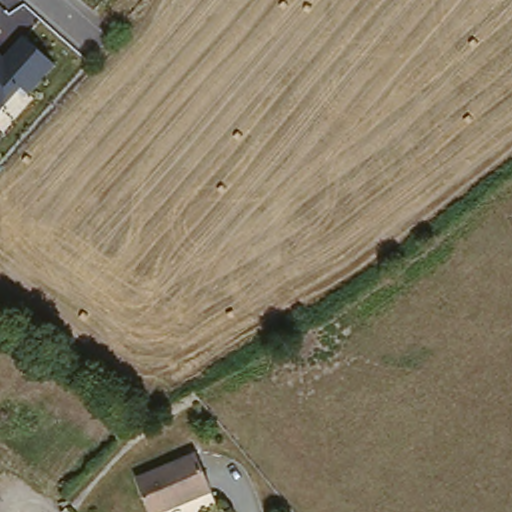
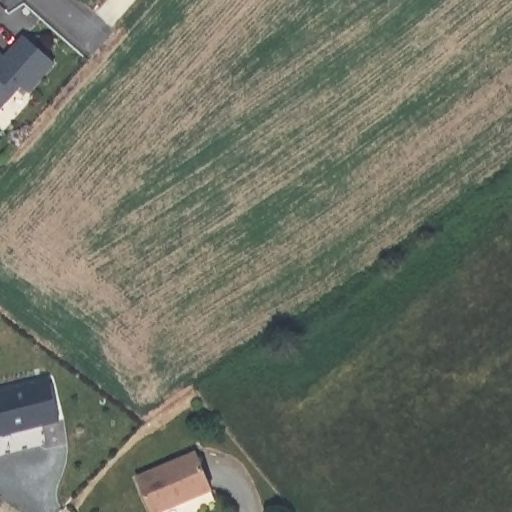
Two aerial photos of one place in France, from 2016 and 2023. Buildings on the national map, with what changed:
unchanged [(25,36),(56,64),(28,97),(19,90),(4,108),(0,112),(0,54),(5,59),(25,36)]
new [(59,423),(0,436),(0,396),(48,385),(59,423)]
demolished [(26,459),(11,472),(1,462),(3,458),(15,447),(26,459)]
unchanged [(199,452),(215,490),(221,502),(207,507),(202,496),(166,512),(156,512),(141,478),(199,452)]

